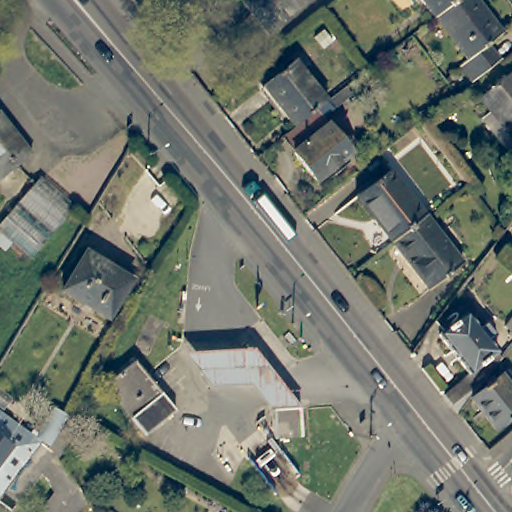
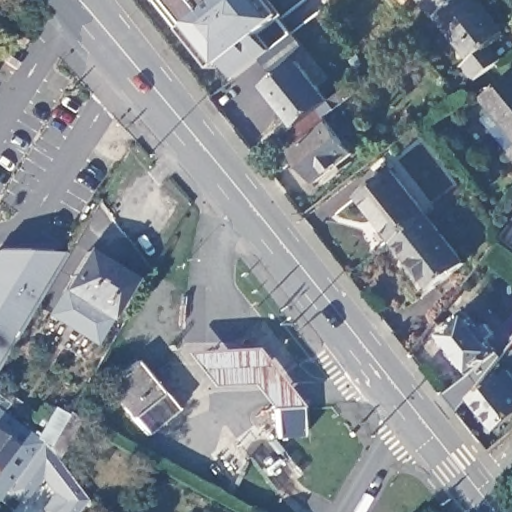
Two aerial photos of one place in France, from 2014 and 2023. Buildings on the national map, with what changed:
new [(272,50),(237,79),(228,61),(224,64),(218,68),(164,0),(273,0),(286,15),(281,19),(291,34),(272,50)]
demolished [(199,12),(190,0),(191,0),(215,0),(199,12)]
demolished [(268,35),(239,2),(242,0),(313,0),(268,35)]
unchanged [(422,0),(465,0),(438,21),(422,0)]
unchanged [(465,0),(476,0),(504,37),(485,52),(498,69),(475,86),(462,70),(470,63),(438,21),(465,0)]
unchanged [(298,132),(266,91),(299,65),(331,107),(298,132)]
unchanged [(512,77),(512,135),(484,101),(512,77)]
unchanged [(374,113),(368,119),(353,99),(326,121),(330,126),(335,122),(340,128),(336,133),(354,158),(318,188),(284,144),(298,132),(331,107),(359,84),(374,113)]
demolished [(34,158),(2,183),(0,182),(0,120),(34,158)]
unchanged [(418,223),(394,242),(359,197),(392,171),(427,216),(418,223)]
unchanged [(465,264),(433,291),(394,242),(418,223),(427,216),(465,264)]
demolished [(14,248),(8,255),(0,249),(0,236),(14,248)]
new [(65,252),(0,358),(0,251),(65,252)]
unchanged [(134,280),(110,318),(64,290),(89,252),(134,280)]
unchanged [(110,318),(93,345),(47,318),(64,290),(110,318)]
unchanged [(475,329),(482,322),(493,336),(512,311),(512,339),(475,386),(453,413),(439,396),(466,374),(438,337),(436,339),(428,327),(442,308),(453,320),(463,311),(475,329)]
unchanged [(271,412),(250,389),(208,391),(182,355),(253,352),(304,414),(303,441),(274,443),(271,412)]
unchanged [(175,414),(150,434),(111,385),(136,364),(175,414)]
unchanged [(490,374),(493,379),(499,374),(512,393),(512,413),(490,430),(467,397),(487,383),(485,379),(490,374)]
unchanged [(70,416),(50,450),(45,443),(27,467),(6,494),(19,504),(13,511),(0,501),(0,390),(13,400),(3,413),(37,439),(54,408),(70,416)]
unchanged [(50,512),(46,508),(58,493),(43,472),(19,504),(6,494),(27,467),(45,443),(50,450),(72,413),(82,418),(59,461),(89,500),(80,512),(50,512)]

